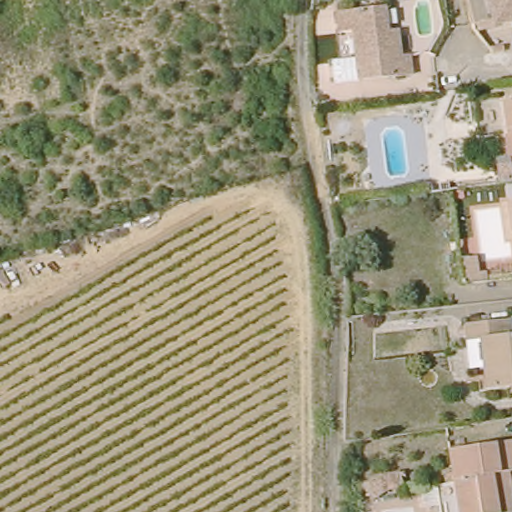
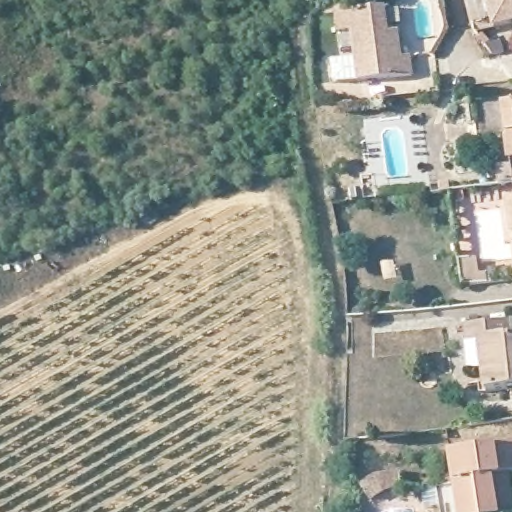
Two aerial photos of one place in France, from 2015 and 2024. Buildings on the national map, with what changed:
unchanged [(510,25),(492,29),(473,35),(472,29),(464,0),(512,0),(512,24),(510,25)]
unchanged [(386,35),(395,34),(400,59),(409,58),(411,76),(357,85),(350,35),(337,37),(335,16),(347,15),(382,10),(386,35)]
unchanged [(511,133),(507,105),(512,104),(512,133),(511,133)]
unchanged [(510,205),(512,204),(512,216),(510,205)]
unchanged [(485,272),(485,283),(461,286),(457,261),(474,258),(477,272),(485,272)]
unchanged [(495,393),(492,368),(477,370),(474,345),(472,327),(512,323),(512,391),(495,393)]
unchanged [(447,453),(512,443),(512,472),(507,473),(512,511),(512,512),(456,512),(452,485),(447,453)]
unchanged [(380,485),(397,482),(399,495),(382,497),(380,485)]

